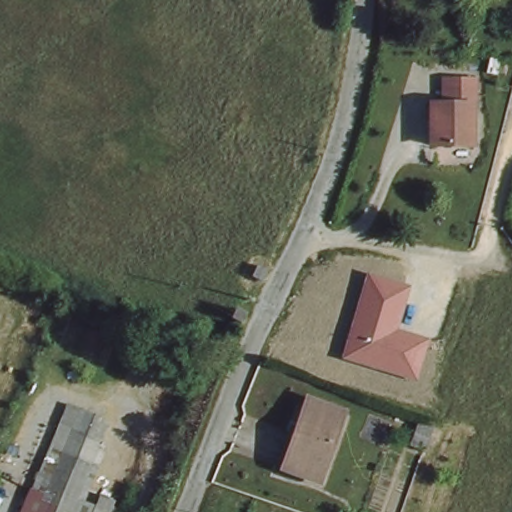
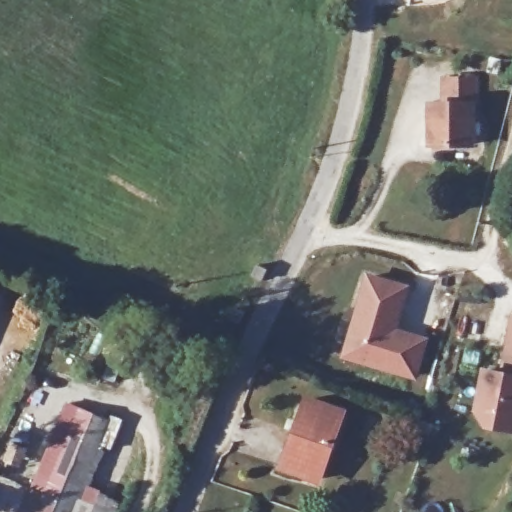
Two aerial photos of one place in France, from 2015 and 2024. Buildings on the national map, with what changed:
unchanged [(480,86),(478,112),(476,112),(473,151),(433,149),(435,109),(449,110),(450,85),(480,86)]
unchanged [(410,285),(398,331),(428,338),(417,378),(341,357),(366,273),(410,285)]
demolished [(246,285),(263,293),(256,307),(240,299),(246,285)]
new [(484,371),(502,373),(511,316),(512,316),(512,429),(485,425),(477,412),(484,371)]
unchanged [(339,415),(316,485),(281,472),(301,403),(339,415)]
unchanged [(34,487),(58,425),(99,440),(78,495),(71,512),(36,512),(44,491),(34,487)]
unchanged [(95,512),(71,512),(78,495),(99,502),(95,512)]
unchanged [(117,510),(116,512),(95,512),(99,502),(117,510)]

